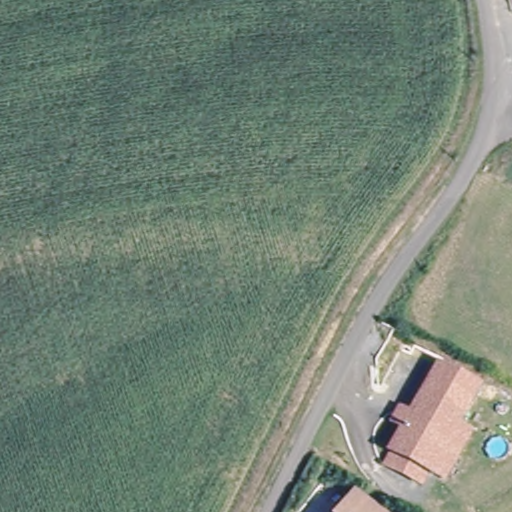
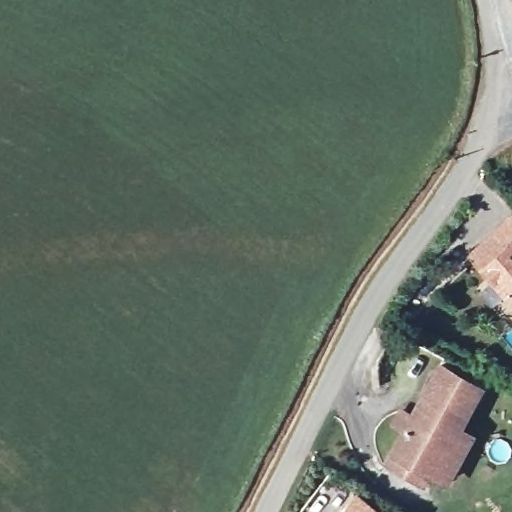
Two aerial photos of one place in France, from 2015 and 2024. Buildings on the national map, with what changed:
new [(511,216),(512,217),(512,240),(512,287),(507,292),(471,252),(511,216)]
unchanged [(389,448),(403,426),(393,420),(399,408),(409,414),(439,366),(478,388),(455,427),(469,435),(443,478),(429,471),(418,491),(378,468),(389,448)]
unchanged [(358,497),(376,512),(344,512),(358,497)]

